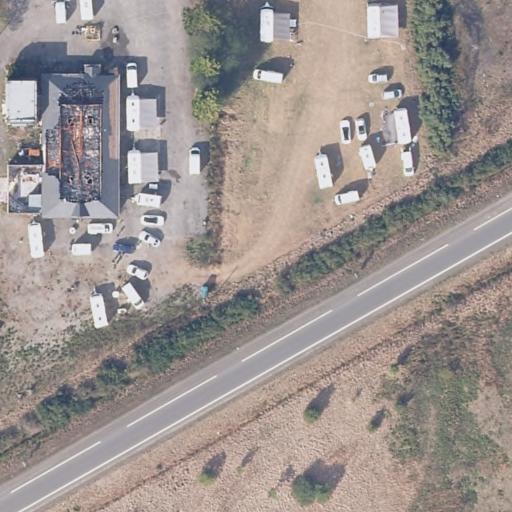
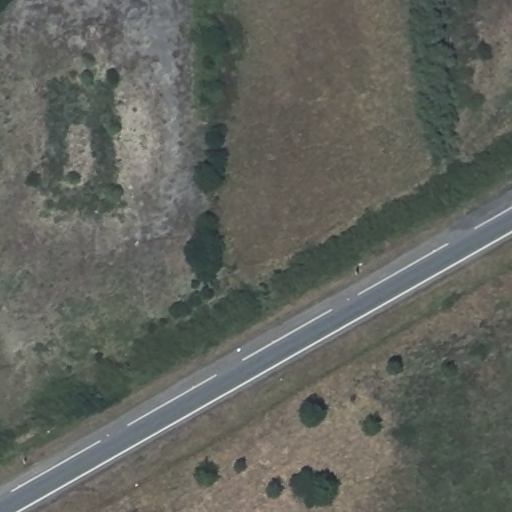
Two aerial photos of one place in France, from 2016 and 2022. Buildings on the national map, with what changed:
demolished [(121,79),(117,221),(44,218),(49,107),(38,107),(38,124),(12,122),(13,75),(41,76),(40,94),(49,94),(50,76),(90,78),(106,79),(121,79)]

